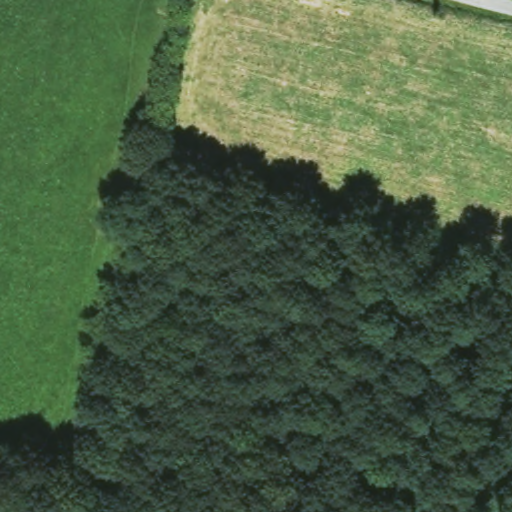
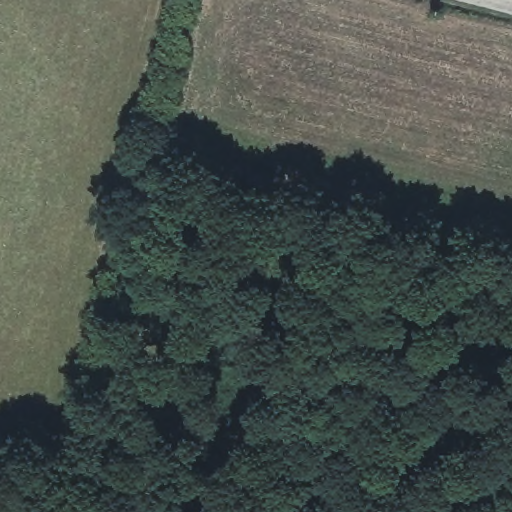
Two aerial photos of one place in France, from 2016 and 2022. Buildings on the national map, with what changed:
[]

